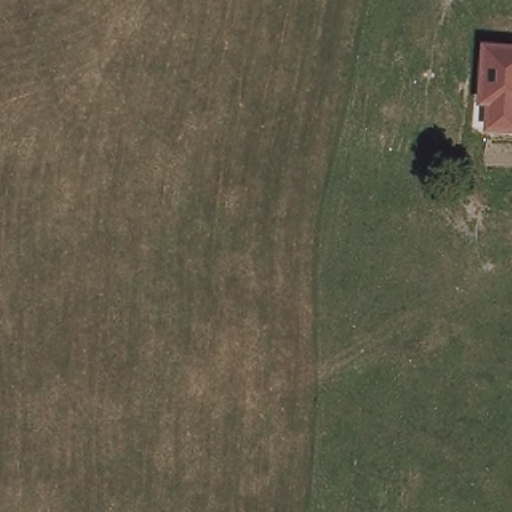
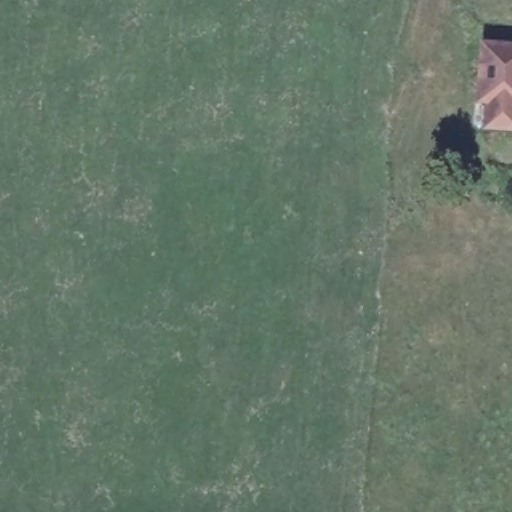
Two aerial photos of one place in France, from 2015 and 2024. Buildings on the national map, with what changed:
unchanged [(512,48),(512,104),(492,103),(494,47),(512,48)]

